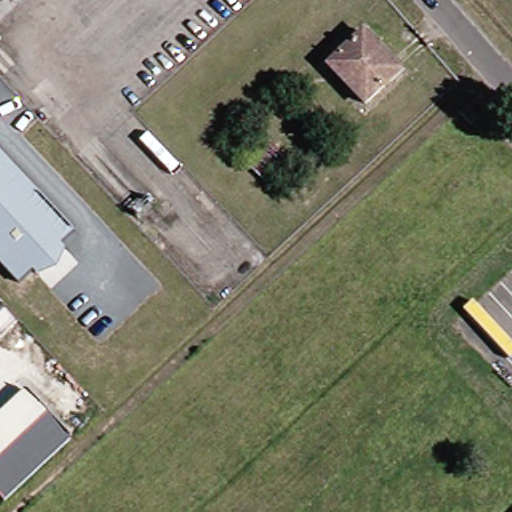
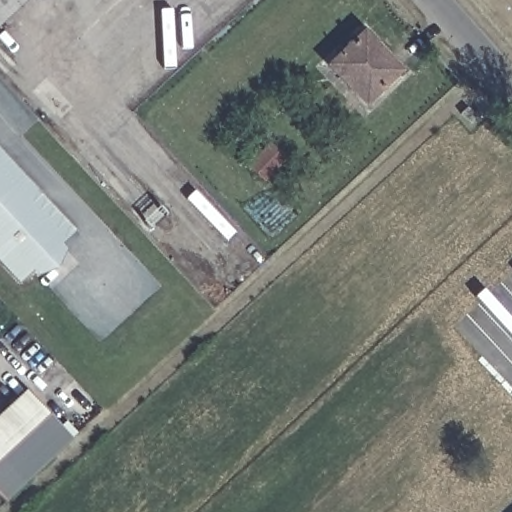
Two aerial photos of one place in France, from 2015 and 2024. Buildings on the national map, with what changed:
unchanged [(23,0),(0,21),(0,0),(23,0)]
unchanged [(392,75),(361,105),(325,66),(360,32),(372,45),(368,50),(392,75)]
unchanged [(478,119),(472,125),(461,114),(468,107),(478,119)]
unchanged [(267,176),(255,164),(270,147),(282,160),(267,176)]
unchanged [(71,232),(16,283),(0,266),(0,156),(71,232)]
unchanged [(66,443),(45,463),(1,416),(23,396),(66,443)]
unchanged [(0,506),(0,505),(0,417),(1,416),(45,463),(0,506)]

